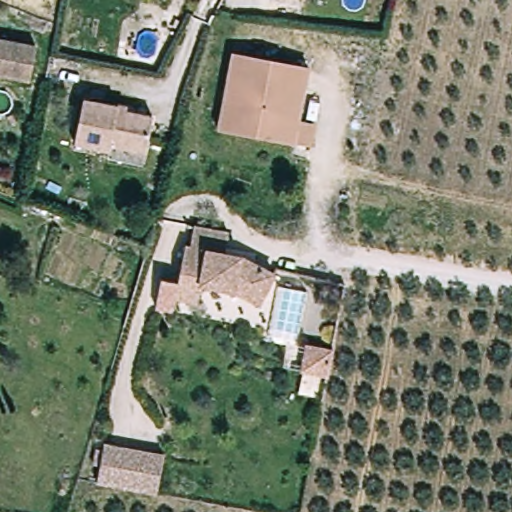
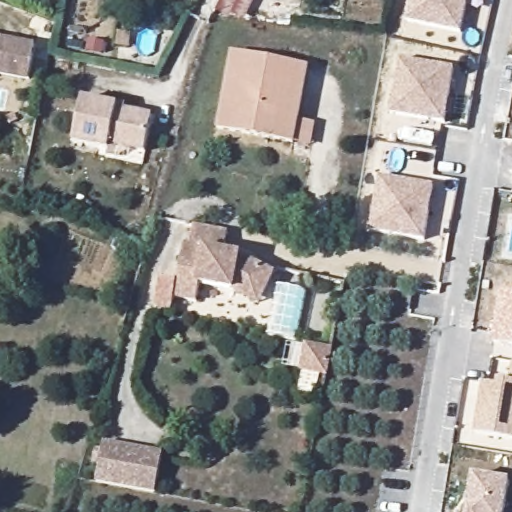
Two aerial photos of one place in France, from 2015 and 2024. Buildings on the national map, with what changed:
new [(463,36),(408,24),(413,0),(470,0),(463,36)]
unchanged [(31,81),(0,76),(0,43),(38,50),(31,81)]
unchanged [(302,148),(287,144),(215,125),(235,50),(307,69),(293,121),(308,125),(302,148)]
new [(447,126),(392,117),(401,61),(456,71),(447,126)]
unchanged [(104,156),(106,145),(75,139),(84,97),(116,104),(115,109),(153,117),(145,153),(143,165),(104,156)]
new [(427,243),(372,234),(380,180),(435,188),(427,243)]
unchanged [(203,289),(199,306),(177,301),(175,314),(157,311),(163,283),(179,286),(186,250),(192,251),(196,230),(231,237),(228,256),(246,261),(277,278),(261,308),(237,295),(203,289)]
new [(502,294),(512,296),(512,347),(494,344),(502,294)]
unchanged [(324,376),(299,371),(305,346),(329,351),(324,376)]
new [(484,385),(497,387),(498,381),(508,382),(509,383),(512,383),(512,379),(512,441),(476,435),(484,385)]
unchanged [(159,493),(99,483),(106,444),(166,453),(159,493)]
new [(469,512),(474,476),(512,483),(508,512),(469,512)]

